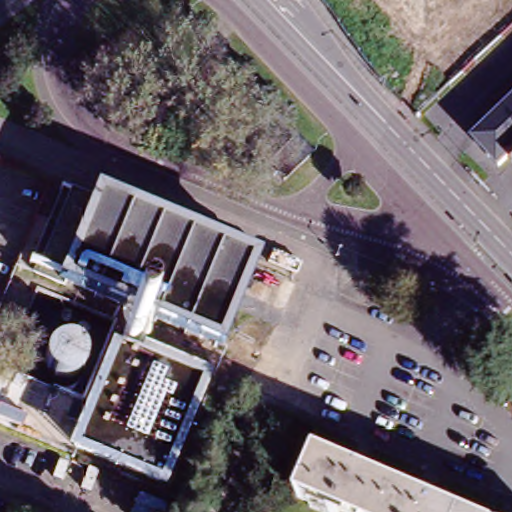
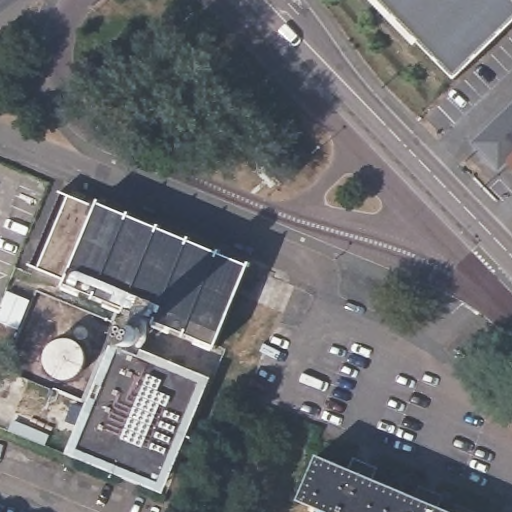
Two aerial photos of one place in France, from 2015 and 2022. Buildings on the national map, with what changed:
new [(362,0),(368,0),(405,38),(402,41),(362,0)]
new [(368,0),(509,0),(512,3),(512,13),(445,78),(368,0)]
new [(512,0),(512,3),(509,0),(512,0)]
unchanged [(512,101),(512,155),(504,162),(495,171),(480,157),(468,144),(477,135),(512,101)]
unchanged [(265,170),(292,144),(305,158),(278,183),(265,170)]
unchanged [(512,171),(504,162),(512,155),(512,171)]
unchanged [(61,278),(35,268),(39,260),(35,258),(63,191),(92,203),(61,278)]
unchanged [(92,203),(95,198),(248,262),(215,343),(61,278),(92,203)]
unchanged [(194,379),(151,482),(66,448),(110,344),(194,379)]
unchanged [(313,458),(344,471),(348,461),(373,471),(368,481),(412,499),(416,489),(439,498),(435,508),(443,512),(317,512),(295,503),(313,458)]

